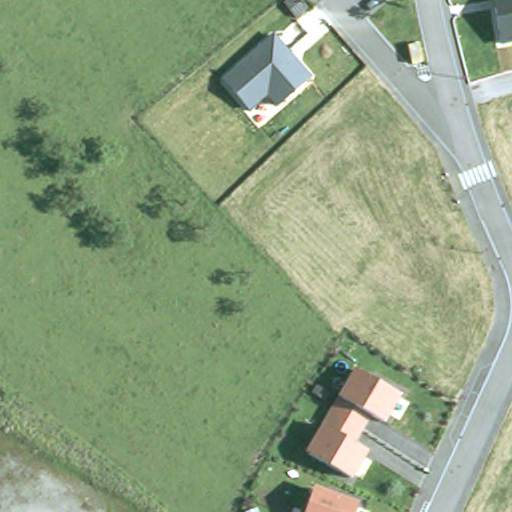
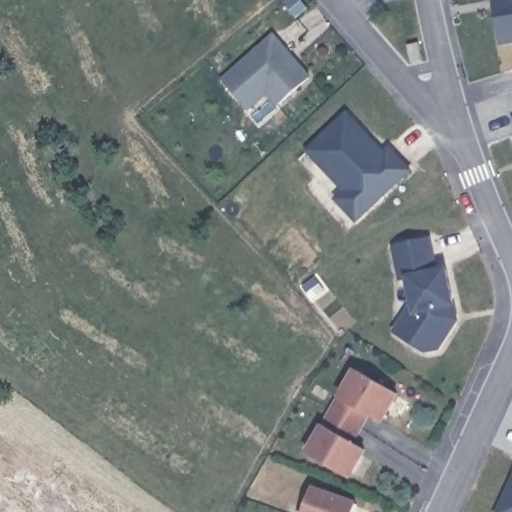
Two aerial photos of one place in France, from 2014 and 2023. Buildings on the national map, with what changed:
unchanged [(496,0),(512,0),(512,41),(502,44),(496,0)]
unchanged [(222,78),(270,35),(273,33),(310,76),(278,105),(267,92),(250,109),(222,78)]
new [(387,148),(390,145),(412,170),(357,224),(332,199),(342,189),(303,150),(348,109),(387,148)]
new [(431,235),(437,269),(447,266),(455,305),(460,322),(440,352),(425,355),(391,335),(412,305),(407,281),(400,283),(392,245),(431,235)]
unchanged [(385,423),(372,415),(354,444),(367,452),(353,478),(307,452),(355,369),(400,394),(385,423)]
new [(512,512),(495,512),(512,472),(512,512)]
unchanged [(354,512),(303,512),(311,490),(356,505),(354,512)]

